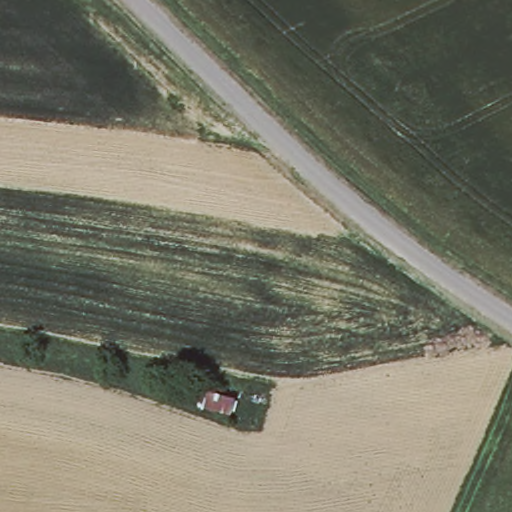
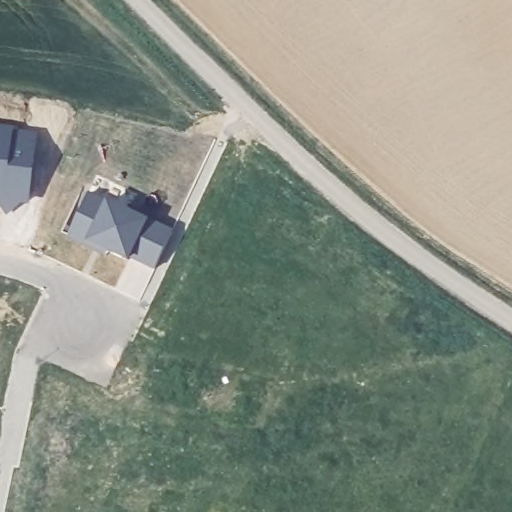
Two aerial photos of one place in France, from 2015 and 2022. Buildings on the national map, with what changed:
new [(15,124),(13,128),(37,131),(29,203),(20,203),(5,213),(0,206),(0,123),(15,124)]
new [(104,200),(106,196),(148,214),(147,219),(172,229),(154,269),(130,256),(127,259),(104,248),(101,254),(67,236),(88,193),(104,200)]
unchanged [(232,397),(228,414),(202,408),(207,391),(232,397)]

